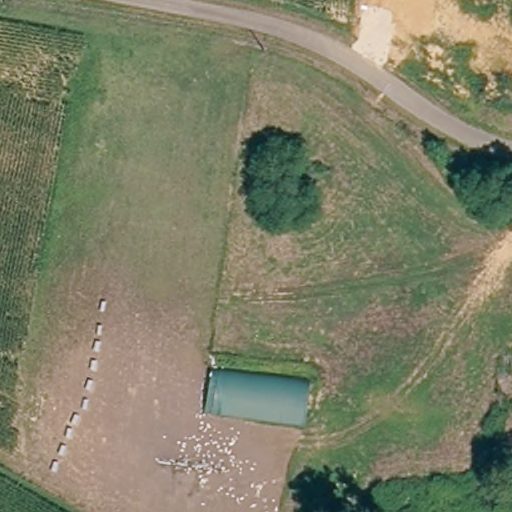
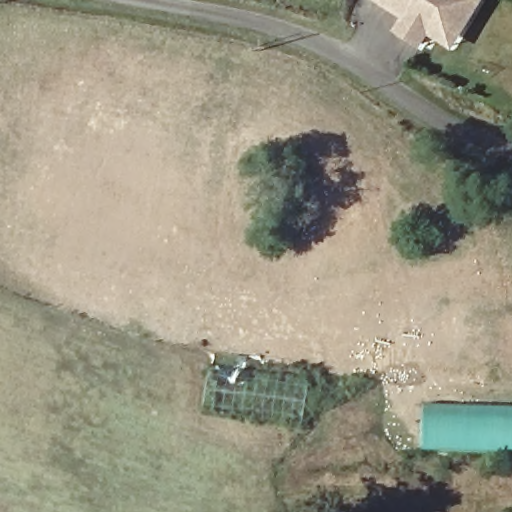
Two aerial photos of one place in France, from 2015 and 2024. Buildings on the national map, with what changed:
new [(402,18),(372,0),(487,0),(454,51),(431,37),(423,50),(394,31),(402,18)]
unchanged [(214,371),(310,382),(305,425),(209,412),(214,371)]
new [(512,408),(512,452),(424,451),(425,405),(512,408)]

